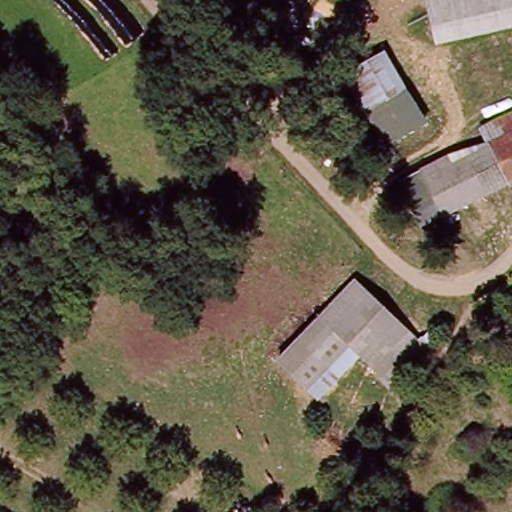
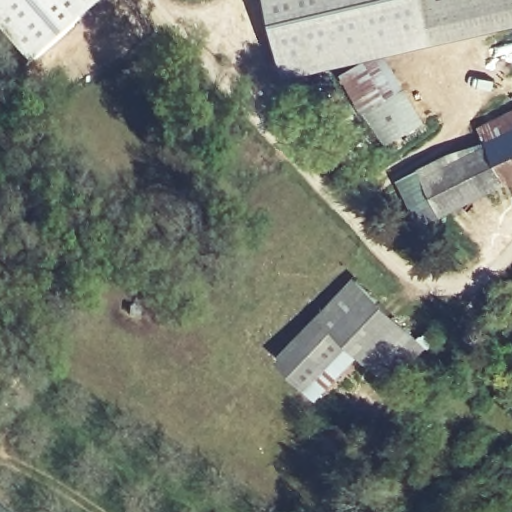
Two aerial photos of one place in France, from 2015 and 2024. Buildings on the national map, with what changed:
new [(100,1),(23,69),(0,43),(0,0),(100,0),(100,1)]
new [(431,25),(435,45),(387,56),(427,123),(388,146),(361,110),(342,75),(368,60),(286,78),(268,0),(424,0),(431,25)]
unchanged [(491,10),(431,25),(424,0),(512,0),(512,5),(491,10)]
unchanged [(497,30),(435,45),(431,25),(491,10),(512,5),(512,26),(497,30)]
unchanged [(490,140),(480,125),(512,108),(512,179),(510,180),(490,140)]
unchanged [(400,181),(417,171),(462,149),(464,153),(490,140),(510,180),(450,211),(432,220),(400,237),(377,193),(400,181)]
unchanged [(361,282),(420,344),(400,362),(410,373),(391,392),(356,358),(321,318),(361,282)]
unchanged [(356,358),(316,395),(280,358),(321,318),(356,358)]
unchanged [(0,512),(0,508),(5,512),(0,512)]

